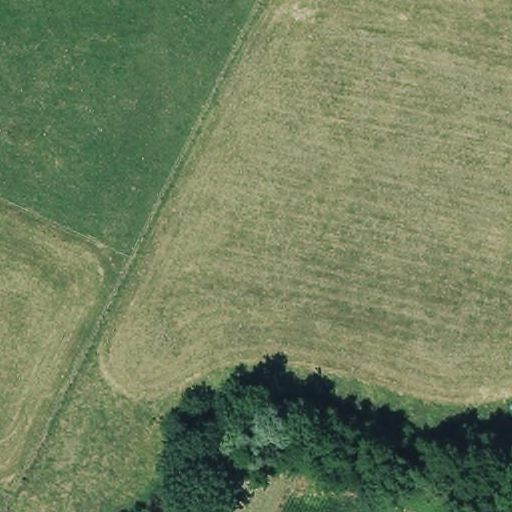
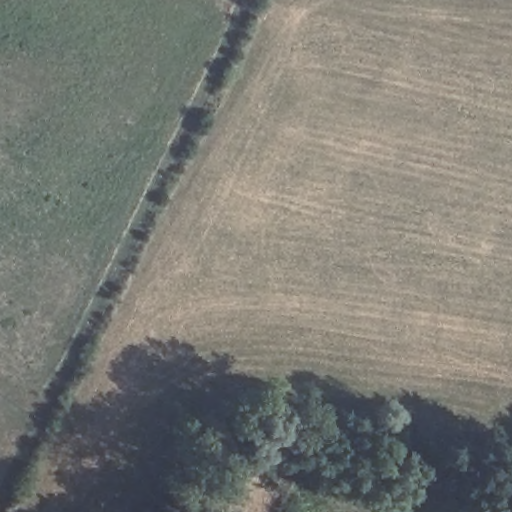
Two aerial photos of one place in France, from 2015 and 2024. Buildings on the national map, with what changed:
[]

